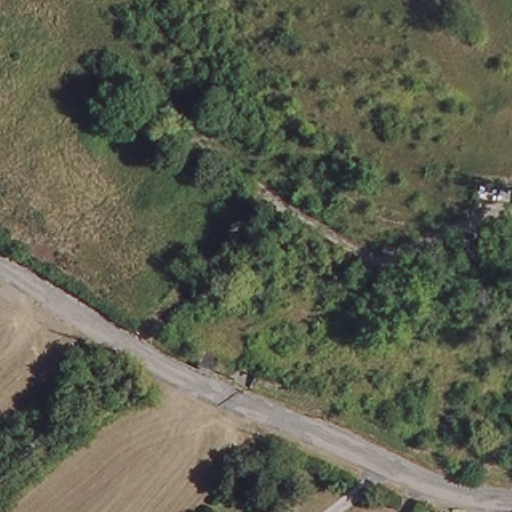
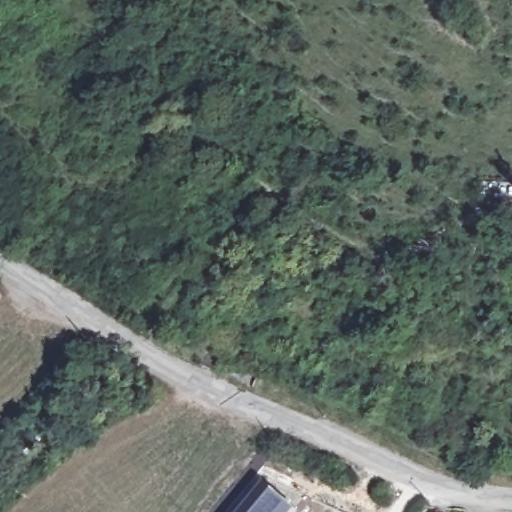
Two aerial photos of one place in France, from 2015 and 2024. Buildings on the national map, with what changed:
unchanged [(219,355),(213,370),(199,365),(206,350),(219,355)]
new [(270,486),(248,512),(228,512),(260,478),(270,486)]
new [(298,510),(296,512),(248,512),(270,486),(298,510)]

